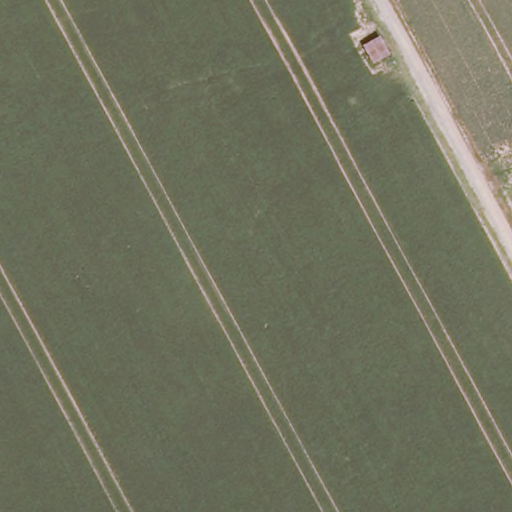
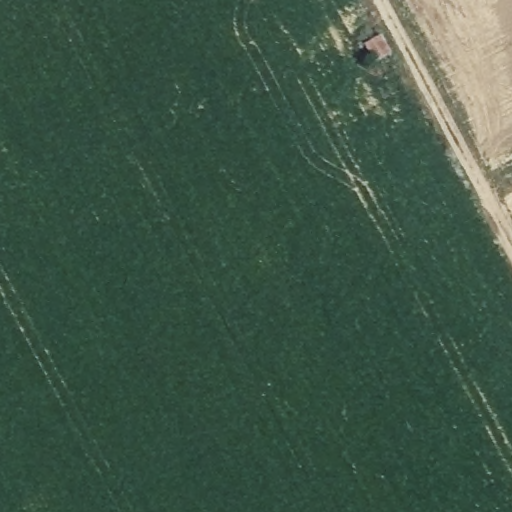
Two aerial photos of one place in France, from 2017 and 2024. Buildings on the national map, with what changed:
unchanged [(392,63),(371,71),(361,51),(382,40),(392,63)]

